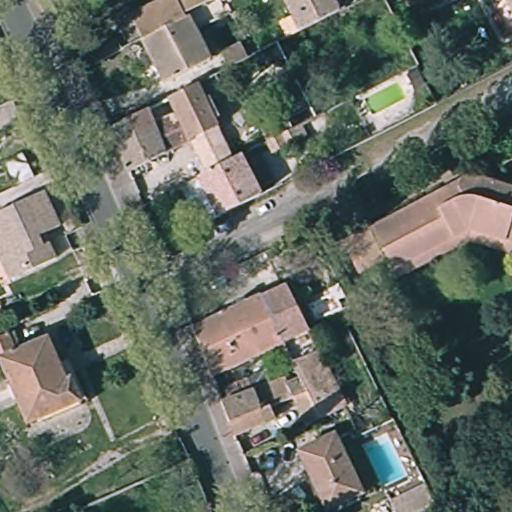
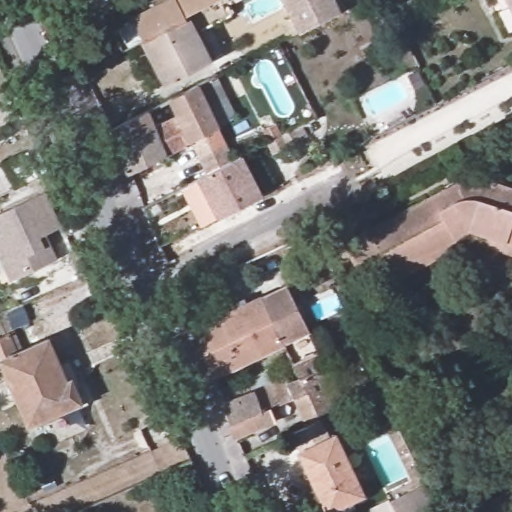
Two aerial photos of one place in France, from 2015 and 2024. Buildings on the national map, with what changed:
unchanged [(120,37),(114,26),(165,0),(220,0),(215,3),(186,17),(155,34),(140,41),(100,61),(95,65),(90,54),(120,37)]
unchanged [(280,0),(332,0),(338,11),(297,32),(280,0)]
unchanged [(497,0),(512,0),(512,29),(497,0)]
unchanged [(155,34),(186,17),(208,61),(163,84),(140,41),(155,34)]
unchanged [(108,130),(146,110),(153,125),(173,115),(166,100),(227,69),(238,92),(208,109),(217,127),(153,160),(158,169),(130,184),(108,130)]
unchanged [(303,140),(276,154),(271,142),(267,133),(279,127),(284,136),(298,129),(303,140)]
unchanged [(201,180),(196,170),(228,153),(233,162),(254,151),(275,190),(213,222),(193,184),(201,180)]
unchanged [(473,240),(398,280),(388,261),(360,273),(345,243),(463,181),(466,174),(512,188),(512,253),(473,240)]
unchanged [(0,221),(0,216),(50,194),(65,229),(50,235),(53,245),(61,261),(15,281),(1,251),(0,249),(0,239),(6,236),(0,221)]
unchanged [(308,393),(294,398),(288,386),(301,380),(284,343),(260,355),(238,309),(285,285),(347,408),(328,417),(321,420),(308,393)]
unchanged [(260,355),(238,367),(212,376),(193,329),(238,308),(238,309),(260,355)]
unchanged [(18,351),(49,340),(60,365),(70,360),(86,399),(28,425),(0,359),(0,340),(10,335),(18,351)]
unchanged [(220,395),(269,375),(273,385),(285,380),(288,386),(294,398),(271,407),(276,420),(237,437),(223,403),(220,395)]
unchanged [(359,495),(323,511),(295,452),(331,435),(359,495)]
unchanged [(399,512),(394,502),(428,485),(437,503),(419,512),(399,512)]

